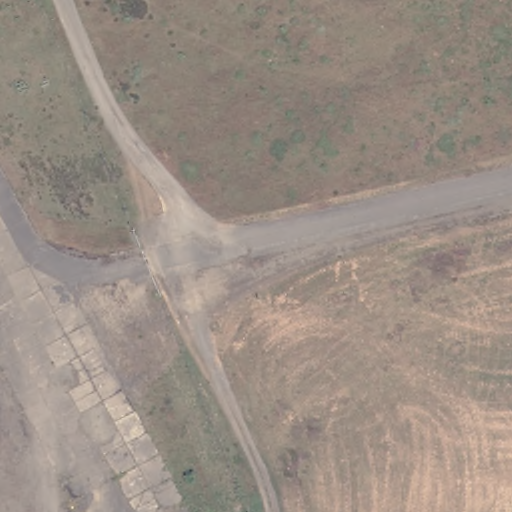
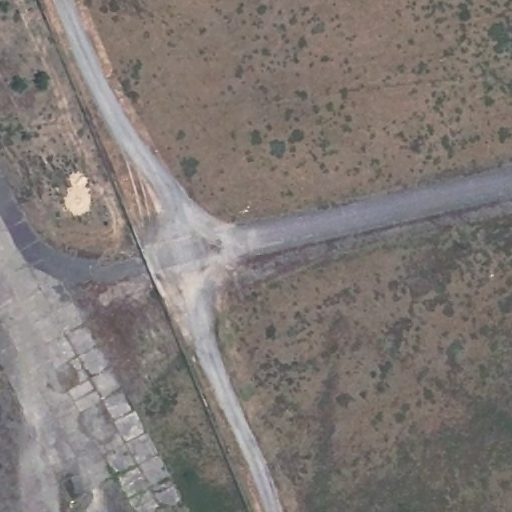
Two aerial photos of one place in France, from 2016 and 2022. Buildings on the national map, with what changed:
[]

